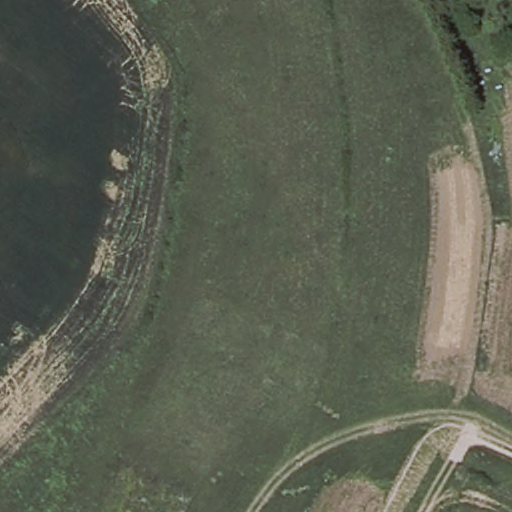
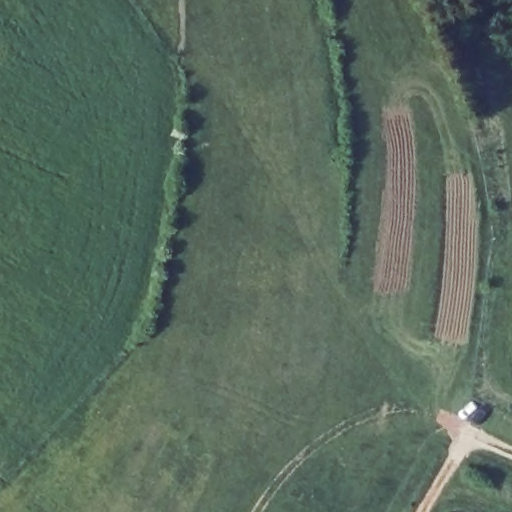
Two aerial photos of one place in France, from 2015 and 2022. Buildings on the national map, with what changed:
[]

